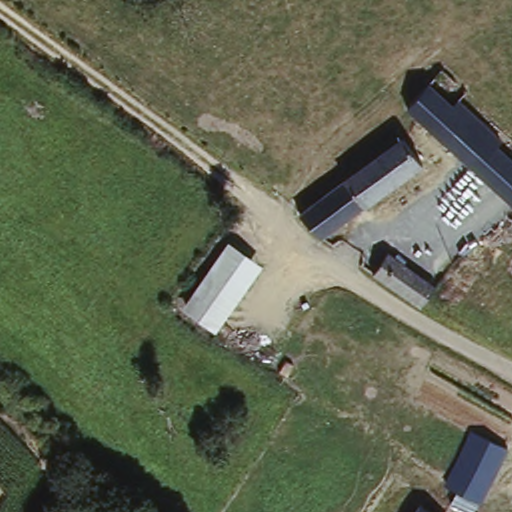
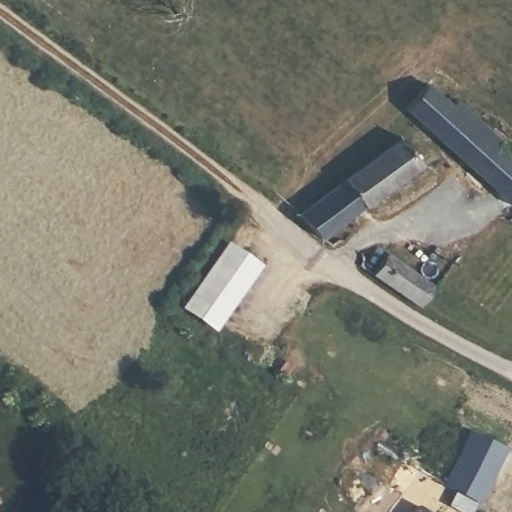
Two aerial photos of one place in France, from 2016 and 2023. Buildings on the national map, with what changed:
unchanged [(402,110),(435,73),(461,93),(452,103),(496,139),(505,129),(512,136),(512,201),(421,125),(402,110)]
unchanged [(402,134),(419,161),(321,235),(298,208),(402,134)]
unchanged [(227,242),(262,266),(214,334),(179,309),(227,242)]
unchanged [(421,308),(371,273),(386,254),(437,287),(421,308)]
unchanged [(480,437),(510,452),(479,512),(477,512),(450,498),(480,437)]
unchanged [(432,512),(415,512),(421,504),(432,512)]

